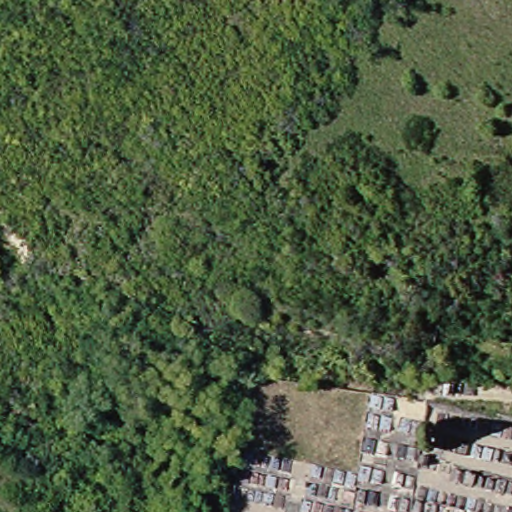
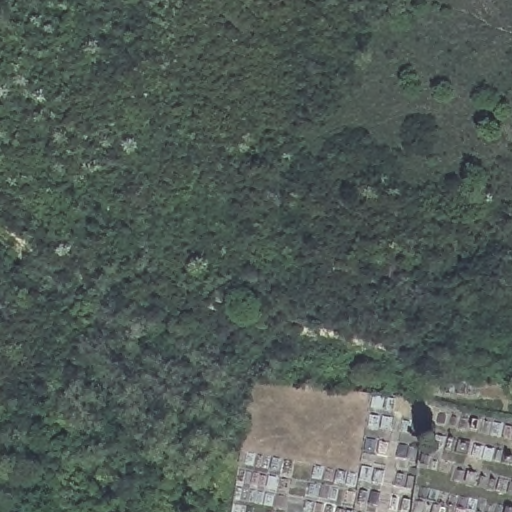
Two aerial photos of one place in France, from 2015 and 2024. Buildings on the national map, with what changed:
[]

